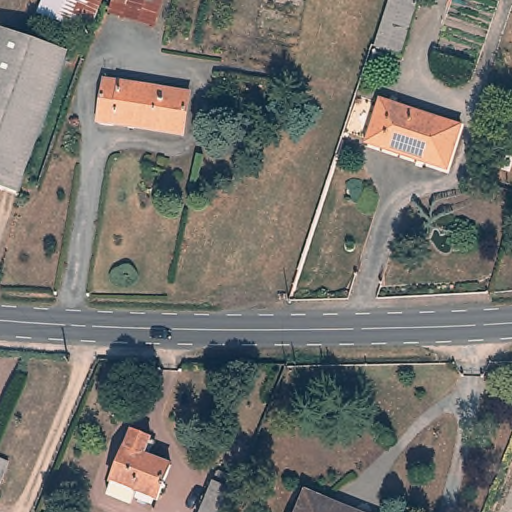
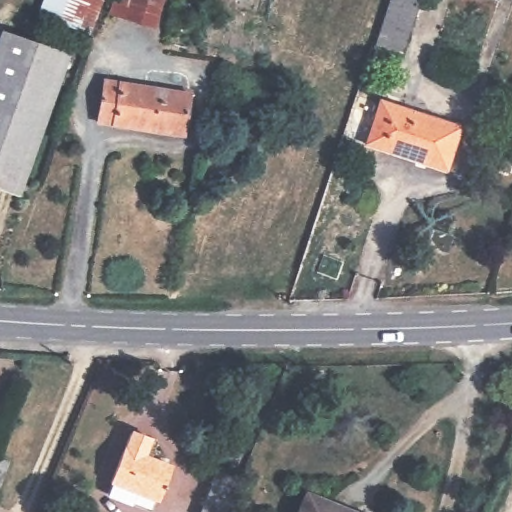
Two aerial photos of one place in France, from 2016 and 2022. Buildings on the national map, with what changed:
unchanged [(45,21),(53,0),(92,0),(77,34),(45,21)]
unchanged [(112,12),(116,0),(166,0),(159,26),(112,12)]
unchanged [(390,0),(422,0),(403,59),(374,51),(390,0)]
unchanged [(502,0),(501,2),(494,0),(502,0)]
unchanged [(21,197),(0,190),(0,30),(66,52),(21,197)]
unchanged [(194,94),(187,136),(102,124),(110,79),(194,94)]
unchanged [(463,129),(450,167),(371,141),(385,101),(463,129)]
unchanged [(155,432),(150,450),(175,462),(160,502),(135,493),(131,506),(107,495),(134,423),(155,432)]
unchanged [(7,512),(0,512),(0,477),(1,473),(19,482),(7,512)]
unchanged [(245,492),(236,512),(214,512),(225,484),(245,492)]
unchanged [(363,512),(299,512),(307,491),(363,512)]

